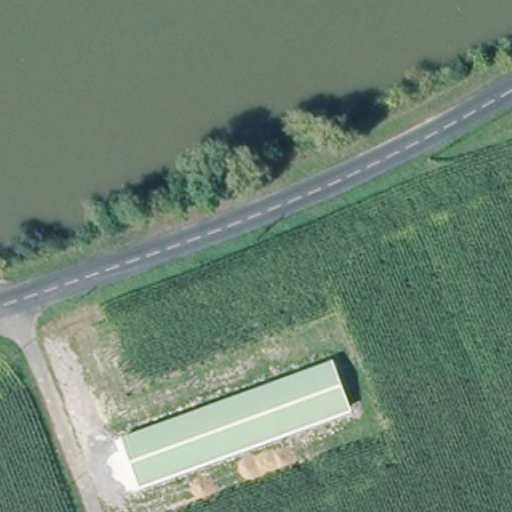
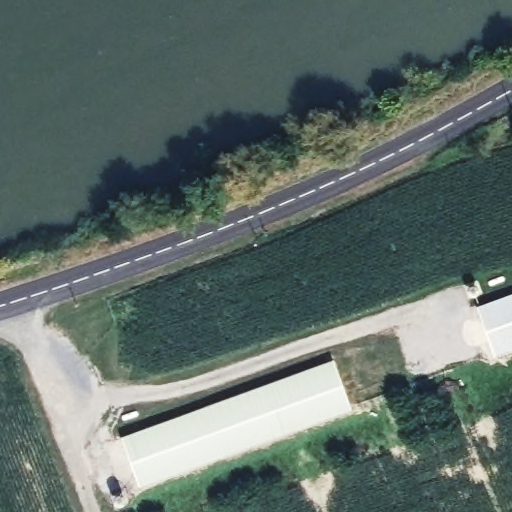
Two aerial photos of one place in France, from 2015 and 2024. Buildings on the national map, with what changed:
new [(496,355),(476,306),(512,293),(512,349),(496,355)]
unchanged [(351,408),(140,487),(121,437),(332,359),(351,408)]

